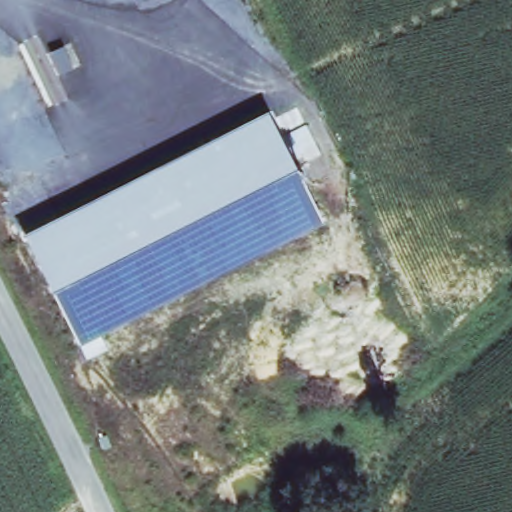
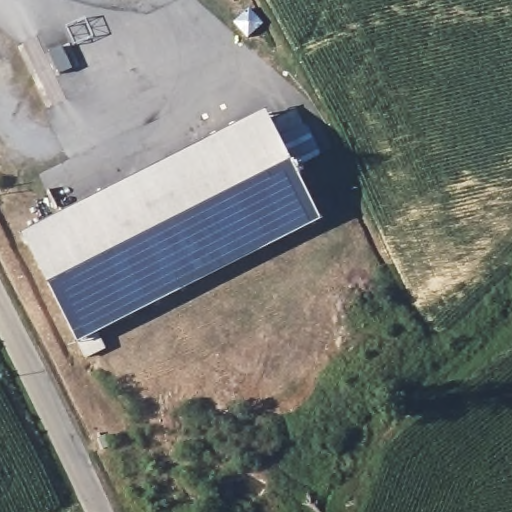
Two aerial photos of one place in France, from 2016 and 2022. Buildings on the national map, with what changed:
unchanged [(64,76),(55,52),(66,49),(75,71),(64,76)]
unchanged [(24,234),(268,111),(322,221),(77,345),(24,234)]

